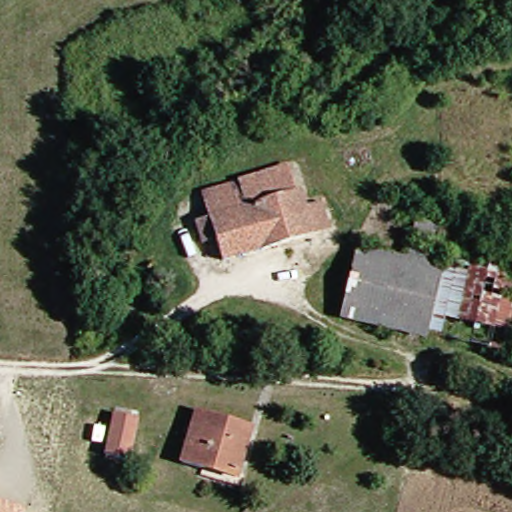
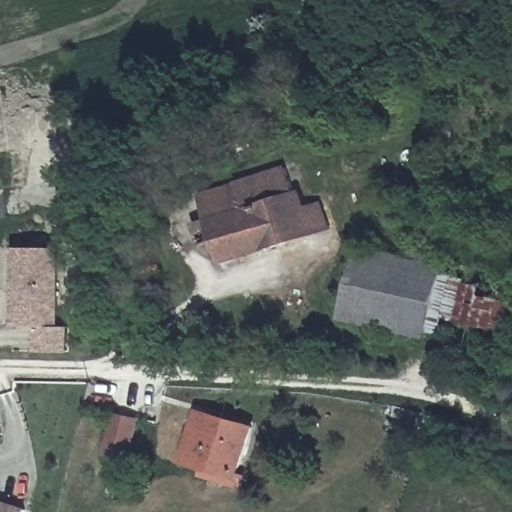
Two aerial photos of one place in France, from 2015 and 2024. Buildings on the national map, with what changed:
unchanged [(291,192),(298,191),(302,209),(316,205),(323,232),(214,266),(211,244),(195,250),(188,227),(205,222),(195,197),(281,167),(291,192)]
unchanged [(439,236),(416,230),(421,214),(444,220),(439,236)]
unchanged [(326,310),(330,293),(341,295),(354,245),(405,258),(408,248),(431,254),(411,332),(326,310)]
new [(58,328),(67,328),(67,355),(33,355),(34,331),(11,331),(12,249),(58,249),(58,328)]
unchanged [(438,256),(512,276),(512,343),(508,358),(414,334),(430,268),(435,269),(438,256)]
unchanged [(127,458),(105,453),(112,412),(134,416),(127,458)]
unchanged [(230,476),(180,460),(195,412),(246,428),(230,476)]
unchanged [(24,512),(0,512),(0,502),(24,509),(24,512)]

